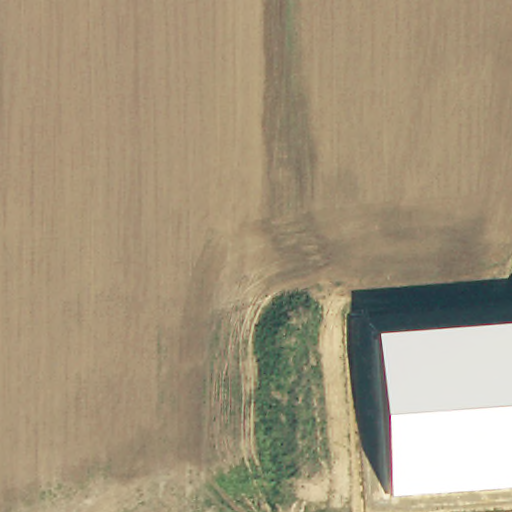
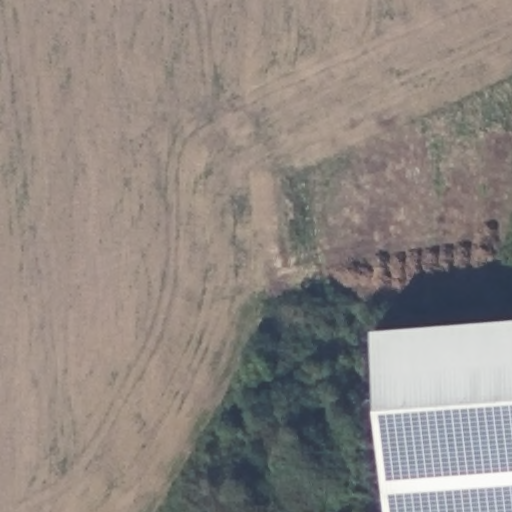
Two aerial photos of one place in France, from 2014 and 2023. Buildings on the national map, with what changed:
unchanged [(374,333),(512,324),(512,484),(387,493),(374,333)]
new [(387,493),(512,484),(512,512),(389,512),(387,493)]

